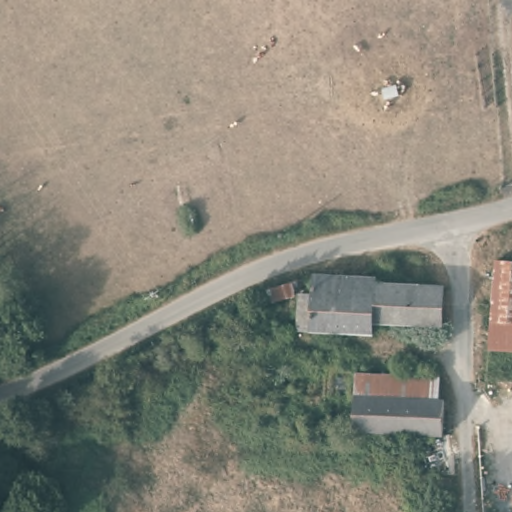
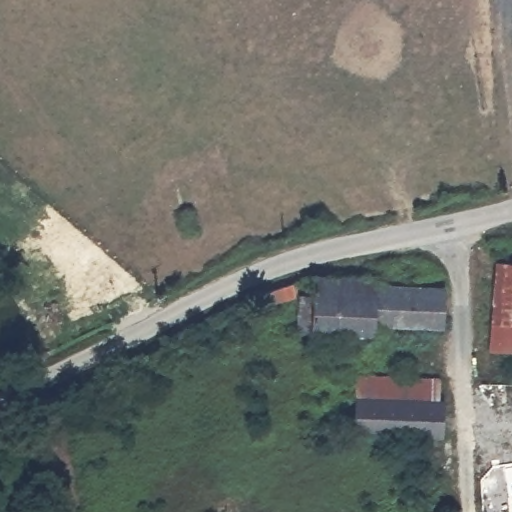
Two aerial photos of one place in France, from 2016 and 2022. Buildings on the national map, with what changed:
unchanged [(496,256),(512,258),(512,351),(489,347),(493,292),(496,256)]
unchanged [(380,273),(380,279),(447,285),(441,324),(375,320),(373,334),(311,329),(295,328),(300,291),(315,292),(316,270),(380,273)]
unchanged [(355,373),(425,375),(430,375),(430,395),(449,397),(447,434),(355,430),(355,373)]

